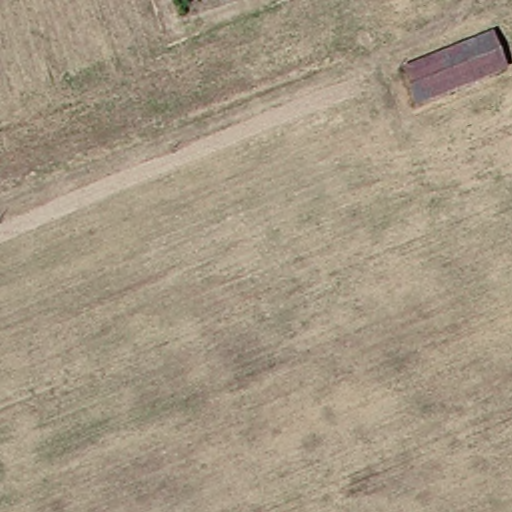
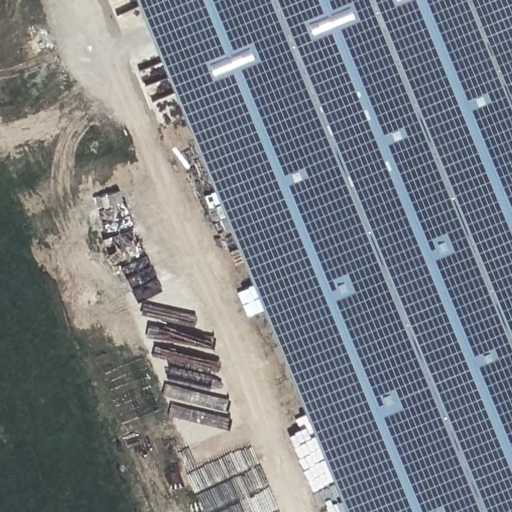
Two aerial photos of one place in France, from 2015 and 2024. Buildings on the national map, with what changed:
new [(512,512),(340,512),(133,0),(512,0),(512,512)]
demolished [(417,5),(381,19),(372,0),(414,0),(417,5)]

